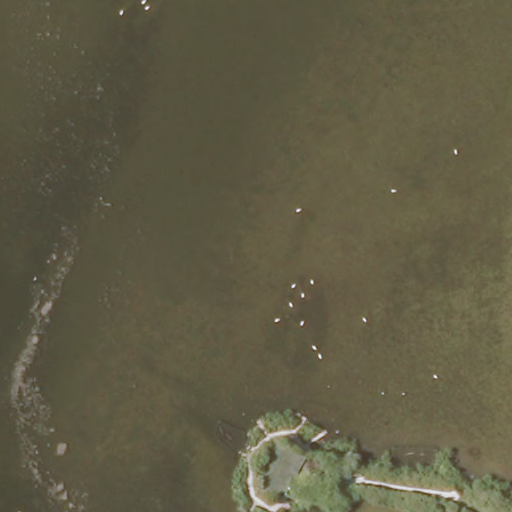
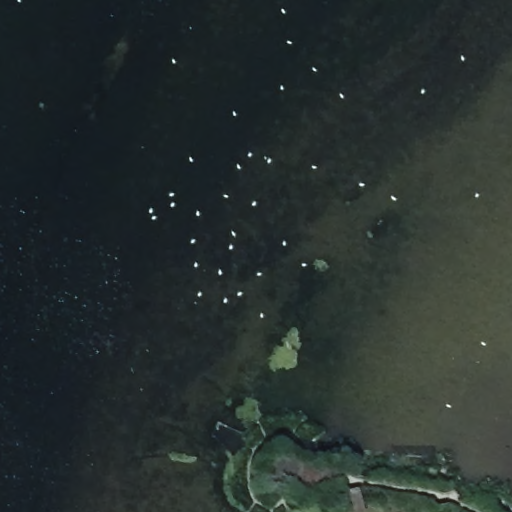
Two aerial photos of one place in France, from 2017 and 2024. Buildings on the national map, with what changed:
unchanged [(233,476),(248,465),(246,457),(262,444),(275,463),(243,489),(233,476)]

